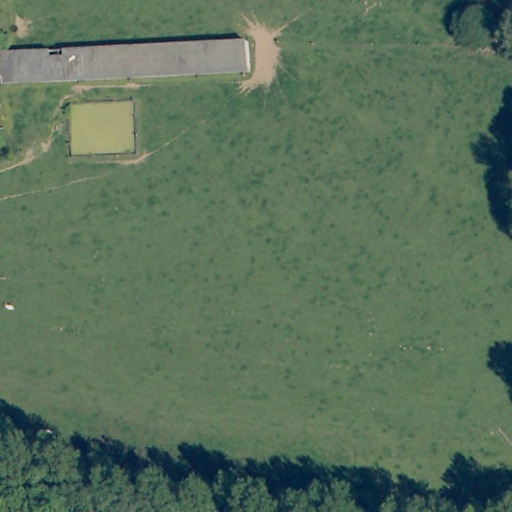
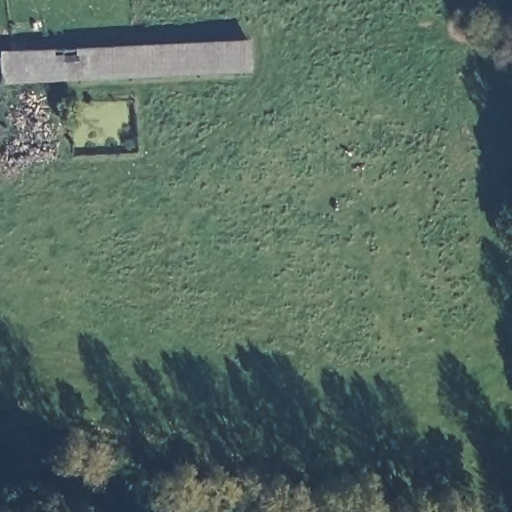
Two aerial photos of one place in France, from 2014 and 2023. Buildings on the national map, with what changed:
unchanged [(8,48),(243,37),(244,67),(0,79),(0,49),(8,48)]

